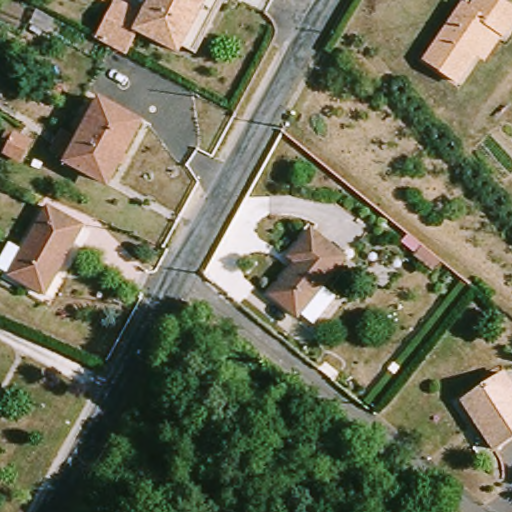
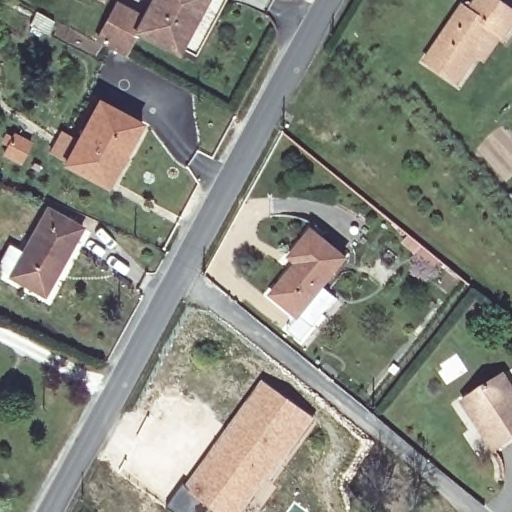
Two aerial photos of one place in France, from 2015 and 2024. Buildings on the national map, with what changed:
new [(101,0),(103,0),(102,1),(101,0)]
unchanged [(174,45),(149,31),(146,36),(135,30),(146,10),(150,1),(151,0),(201,0),(219,0),(218,1),(187,54),(174,45)]
unchanged [(476,59),(457,85),(426,61),(460,15),(467,21),(484,1),(484,0),(493,0),(495,1),(512,16),(512,31),(503,44),(487,67),(476,59)]
unchanged [(135,30),(126,56),(97,41),(115,1),(120,1),(146,10),(135,30)]
unchanged [(112,185),(88,172),(82,181),(65,170),(100,104),(143,127),(112,185)]
unchanged [(4,167),(0,165),(0,142),(14,150),(4,167)]
unchanged [(85,226),(64,268),(27,251),(51,207),(85,226)]
unchanged [(313,325),(298,315),(296,318),(272,300),(297,263),(288,257),(305,230),(339,252),(317,285),(333,296),(313,325)]
unchanged [(64,268),(48,297),(0,273),(0,271),(13,245),(27,251),(64,268)]
unchanged [(512,388),(512,443),(491,456),(475,427),(460,402),(471,396),(505,376),(512,388)]
new [(182,485),(191,492),(267,391),(307,422),(240,512),(215,512),(169,512),(166,509),(182,485)]

